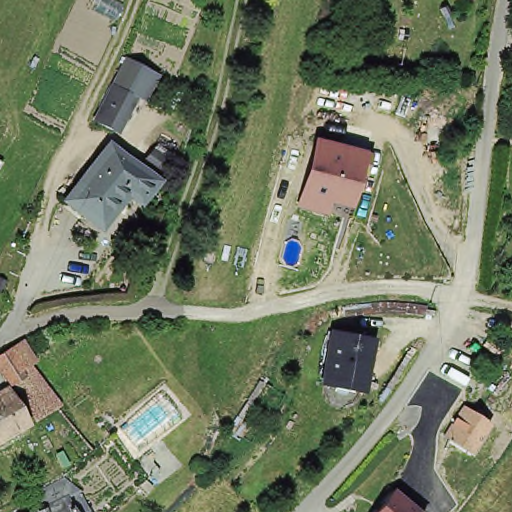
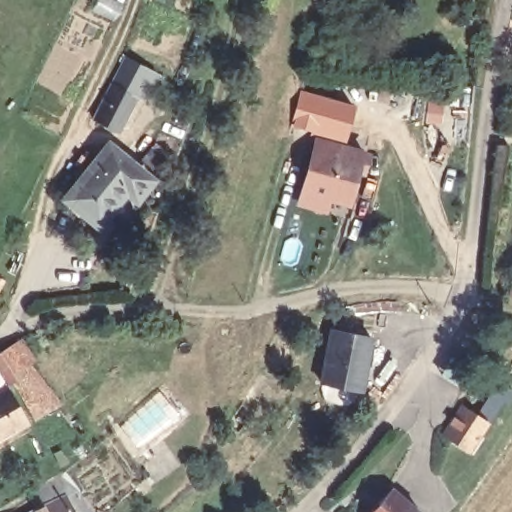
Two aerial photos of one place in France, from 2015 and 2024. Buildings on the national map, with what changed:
unchanged [(151,179),(137,197),(130,191),(124,185),(116,196),(122,201),(105,224),(68,193),(110,143),(91,132),(110,98),(120,81),(125,72),(156,90),(152,96),(141,115),(132,110),(112,145),(140,169),(151,179)]
new [(290,131),(300,88),(356,105),(345,144),(312,137),(290,131)]
unchanged [(365,178),(356,175),(348,208),(330,203),(327,214),(295,206),(312,137),(370,153),(365,178)]
unchanged [(362,389),(325,380),(335,326),(370,331),(362,389)]
unchanged [(67,403),(37,422),(0,356),(0,353),(29,338),(67,403)]
unchanged [(0,445),(0,394),(10,388),(33,426),(0,445)]
unchanged [(468,454),(440,434),(461,404),(490,423),(468,454)]
unchanged [(132,501),(124,493),(143,478),(147,483),(142,490),(143,493),(132,501)]
unchanged [(420,512),(368,512),(392,484),(420,512)]
unchanged [(63,500),(70,512),(38,512),(42,510),(63,500)]
unchanged [(117,512),(111,512),(115,509),(117,512)]

